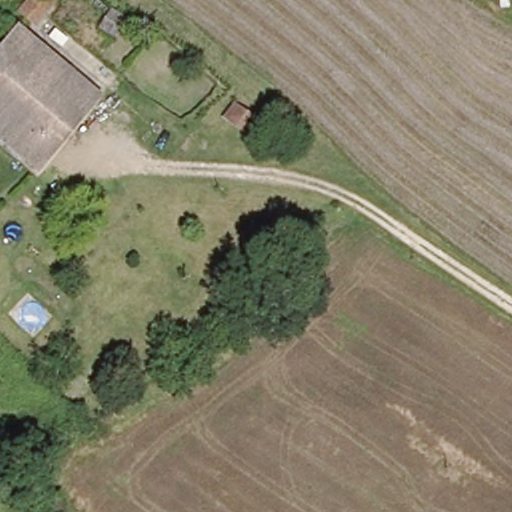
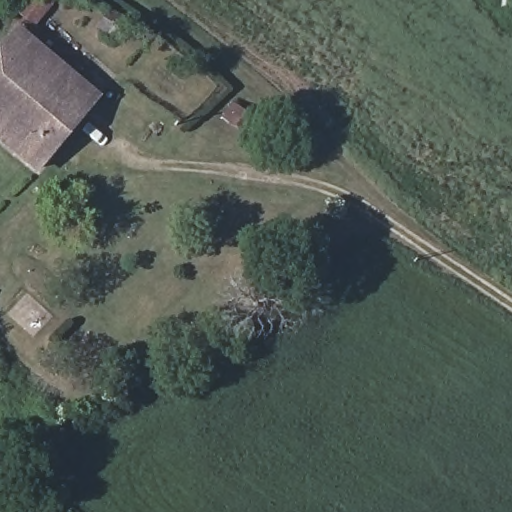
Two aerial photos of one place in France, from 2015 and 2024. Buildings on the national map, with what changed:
unchanged [(0,133),(0,52),(21,26),(106,95),(46,170),(0,133)]
unchanged [(0,252),(0,228),(18,207),(31,217),(1,253),(0,252)]

